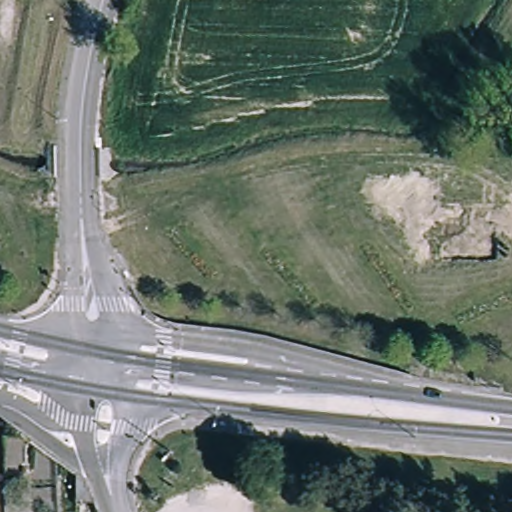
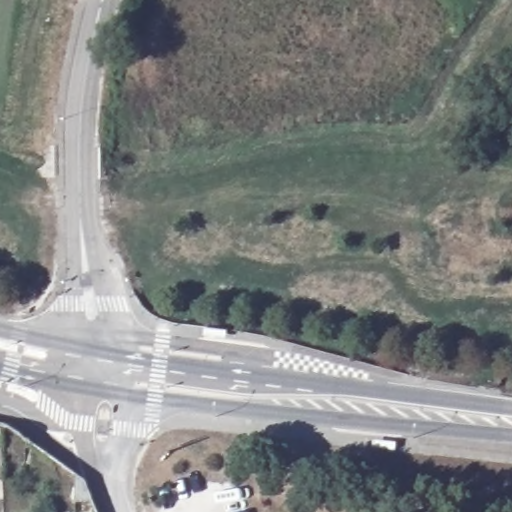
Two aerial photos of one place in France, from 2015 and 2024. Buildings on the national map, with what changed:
unchanged [(75,472),(86,480),(93,498),(94,502),(75,502),(75,472)]

